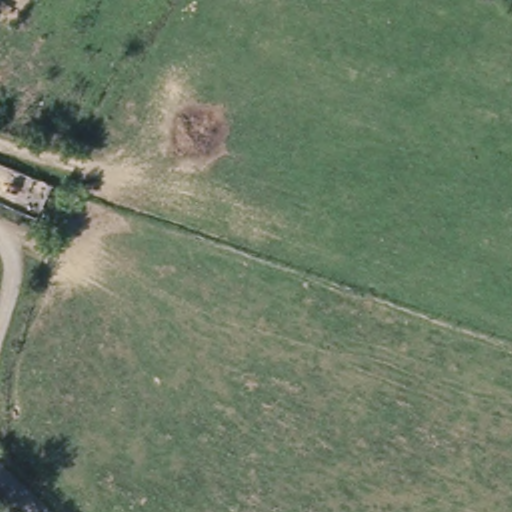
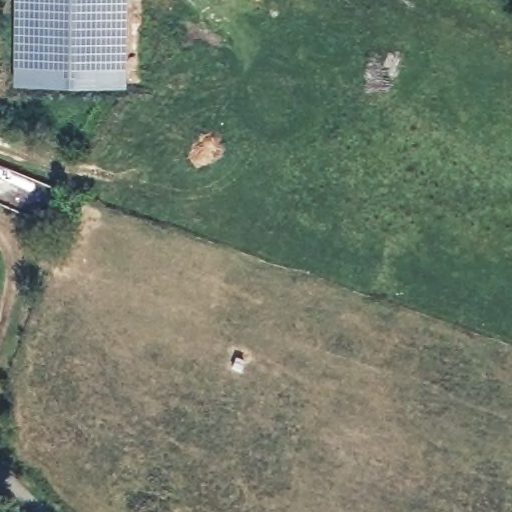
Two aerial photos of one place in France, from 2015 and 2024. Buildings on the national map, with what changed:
new [(127,91),(16,89),(19,0),(129,0),(127,91)]

